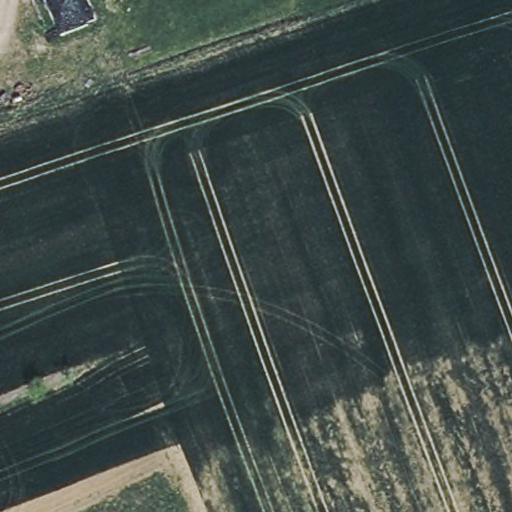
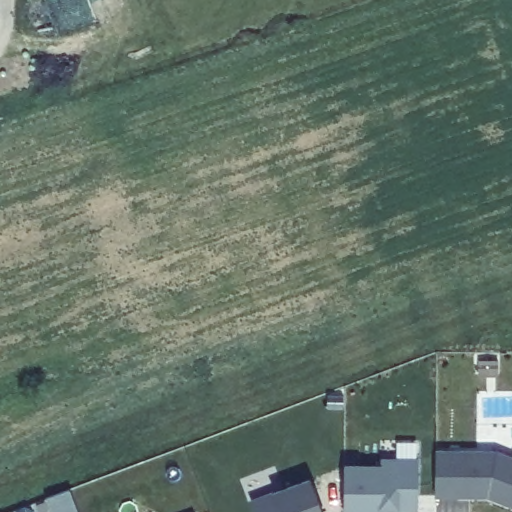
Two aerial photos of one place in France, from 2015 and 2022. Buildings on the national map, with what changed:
new [(512,456),(512,507),(487,497),(434,497),(435,450),(495,449),(512,456)]
new [(417,511),(381,509),(381,512),(343,512),(344,462),(382,463),(381,457),(418,457),(417,511)]
new [(323,512),(254,512),(249,499),(272,491),(310,477),(323,512)]

